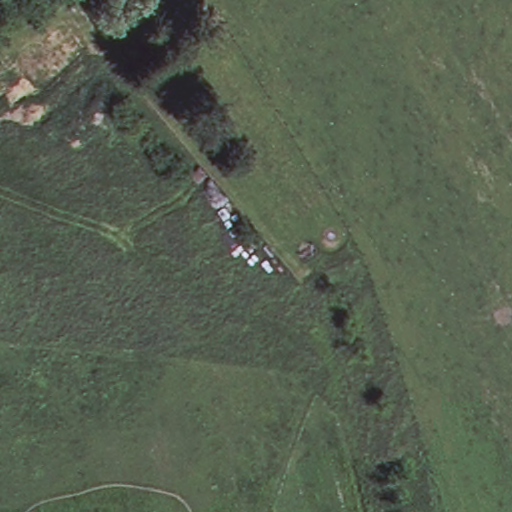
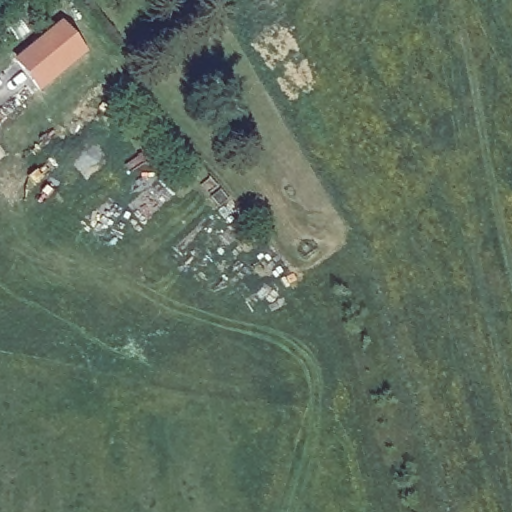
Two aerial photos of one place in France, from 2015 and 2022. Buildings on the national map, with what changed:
new [(14,61),(61,23),(87,53),(38,92),(14,61)]

